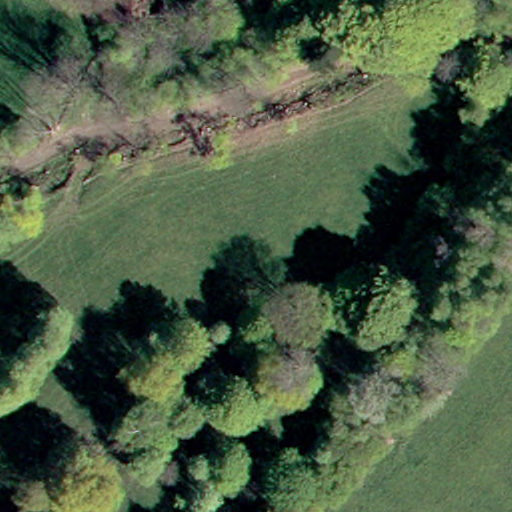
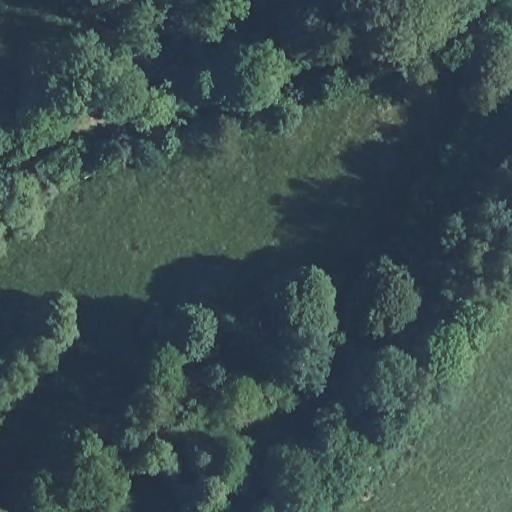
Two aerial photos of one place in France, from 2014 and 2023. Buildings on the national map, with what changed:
unchanged [(103,23),(100,0),(164,0),(166,16),(103,23)]

